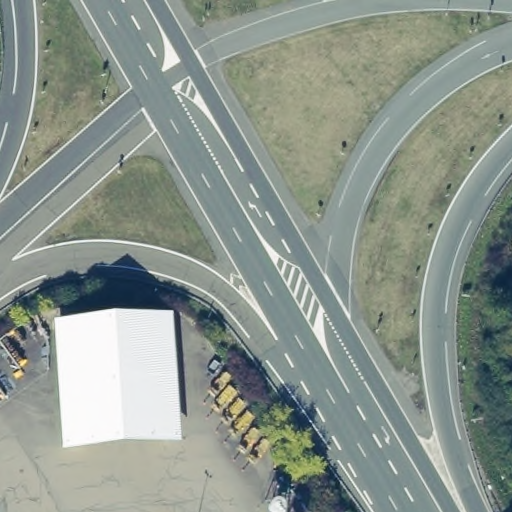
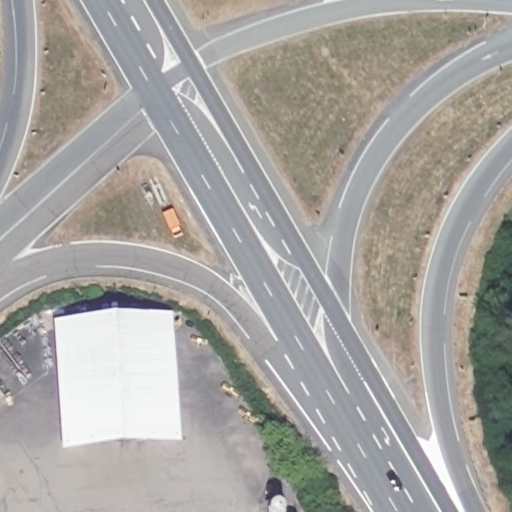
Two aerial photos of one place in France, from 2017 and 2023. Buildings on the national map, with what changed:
unchanged [(65,320),(67,320),(149,315),(151,315),(160,314),(167,429),(158,430),(156,430),(74,435),(73,435),(64,435),(56,320),(65,320)]

